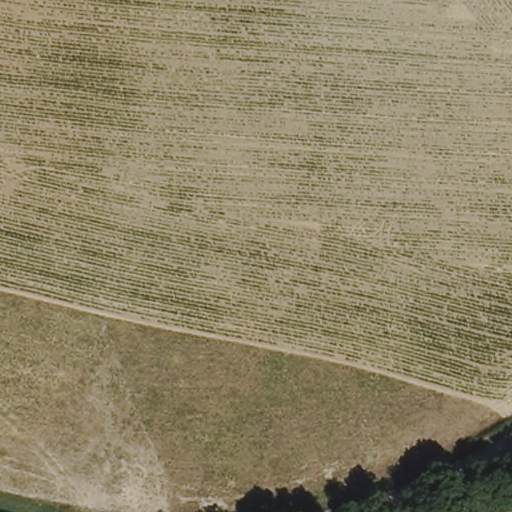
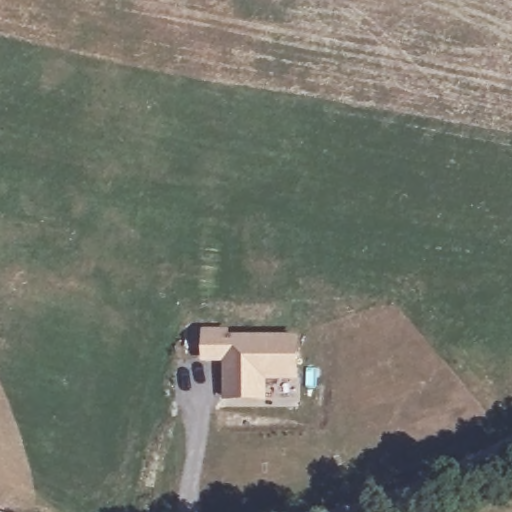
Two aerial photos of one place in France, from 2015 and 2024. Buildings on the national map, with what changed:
new [(266,379),(266,401),(224,400),(226,361),(203,361),(203,329),(231,328),(231,335),(298,334),(299,378),(266,379)]

